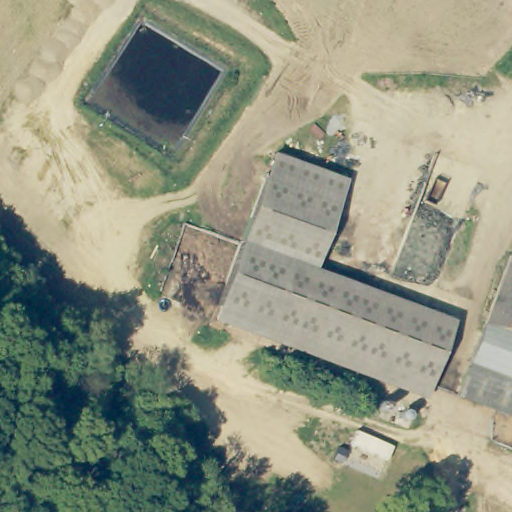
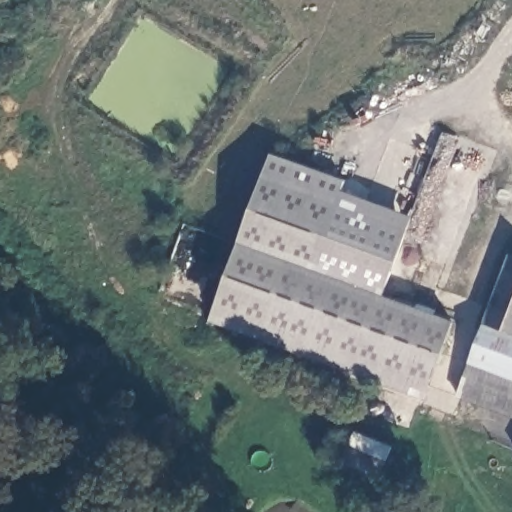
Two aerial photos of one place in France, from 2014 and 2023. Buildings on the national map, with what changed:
unchanged [(425,385),(212,307),(268,154),(341,180),(309,270),(448,320),(425,385)]
new [(369,292),(309,270),(338,188),(413,216),(383,297),(369,292)]
unchanged [(484,323),(510,256),(512,257),(512,333),(491,325),(484,323)]
unchanged [(512,333),(512,377),(469,361),(484,323),(491,325),(512,333)]
unchanged [(469,361),(512,377),(512,416),(457,395),(469,361)]
unchanged [(510,435),(512,430),(512,446),(506,444),(510,435)]

